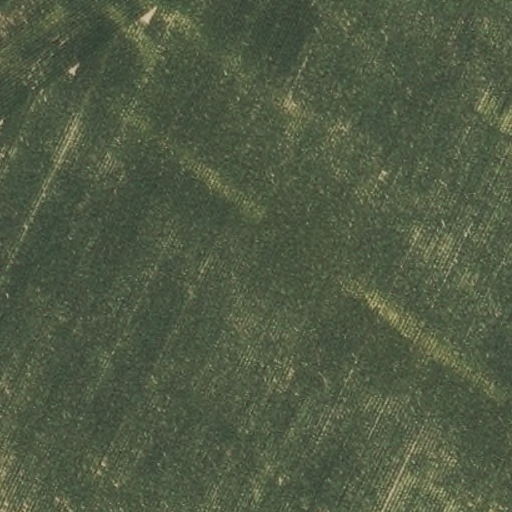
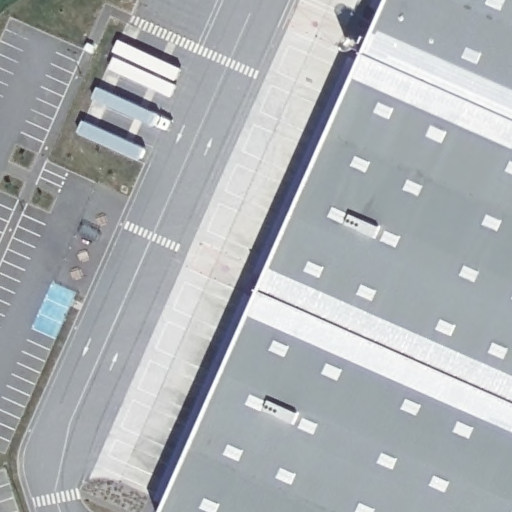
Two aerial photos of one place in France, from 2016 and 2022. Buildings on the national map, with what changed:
new [(512,113),(512,512),(167,512),(370,50),(512,113)]

